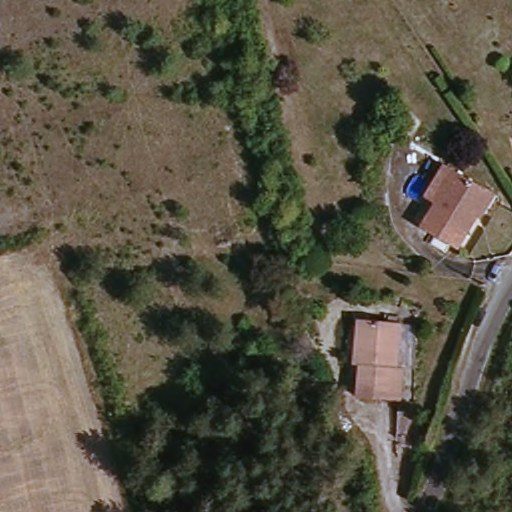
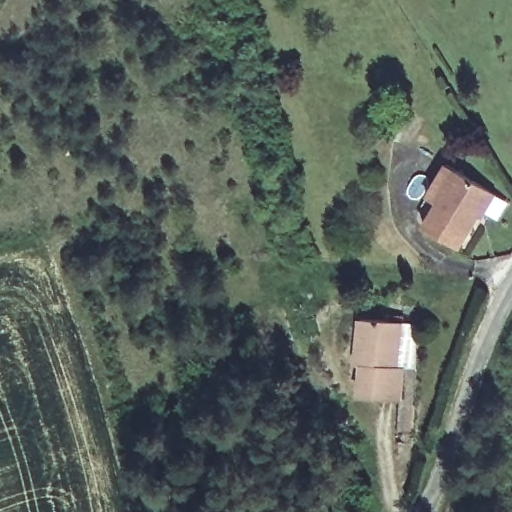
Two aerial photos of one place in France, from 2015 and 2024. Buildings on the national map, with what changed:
unchanged [(459,252),(425,230),(437,207),(427,200),(448,168),(459,174),(492,196),(459,252)]
unchanged [(359,363),(352,364),(354,322),(397,326),(393,371),(401,372),(397,407),(357,405),(359,363)]

